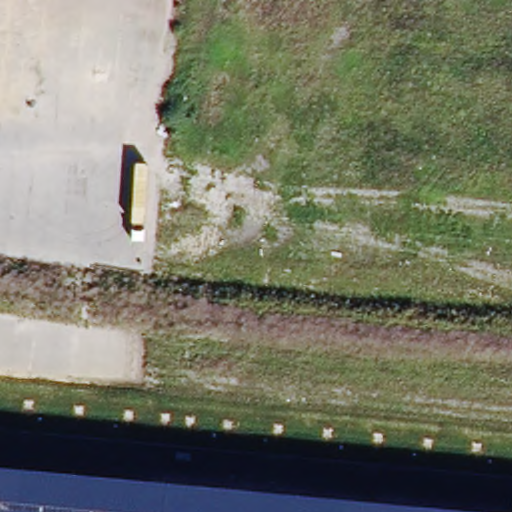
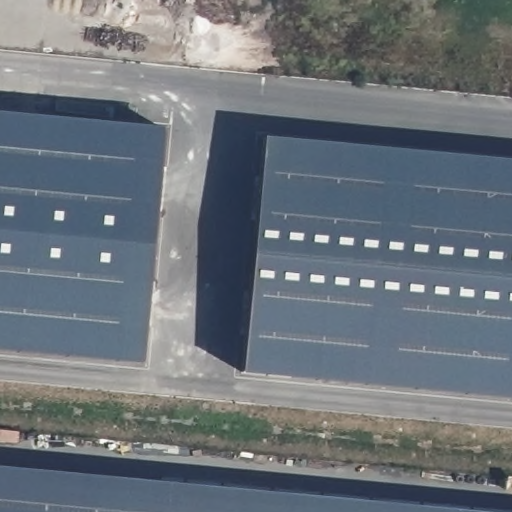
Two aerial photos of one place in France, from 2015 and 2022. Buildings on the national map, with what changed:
new [(0,345),(0,114),(162,129),(140,358),(0,345)]
new [(512,162),(512,397),(242,372),(265,139),(512,162)]
unchanged [(0,469),(447,512),(0,512),(0,469)]

